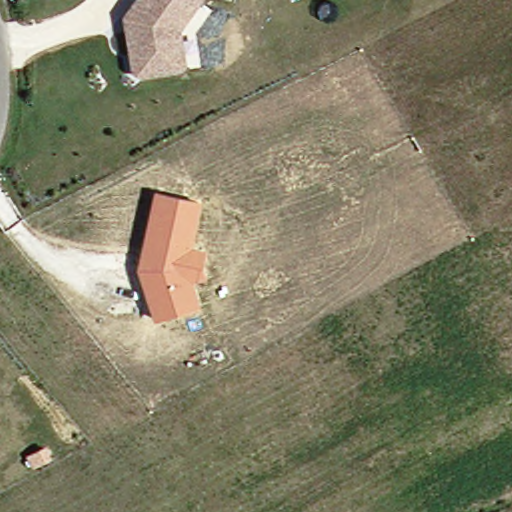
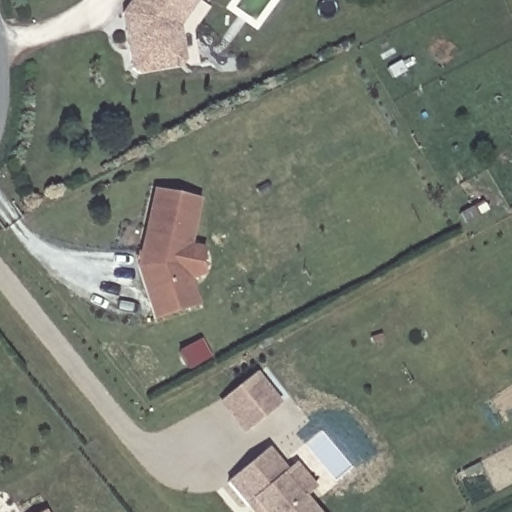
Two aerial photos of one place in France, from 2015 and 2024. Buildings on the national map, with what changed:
unchanged [(188,63),(136,75),(118,17),(128,0),(193,0),(177,25),(188,63)]
unchanged [(199,200),(184,269),(196,306),(155,320),(140,267),(154,194),(199,200)]
new [(282,405),(243,435),(218,404),(257,373),(282,405)]
new [(268,450),(287,472),(295,465),(314,490),(304,498),(316,512),(250,512),(227,484),(268,450)]
new [(46,512),(45,512),(45,511),(46,512)]

